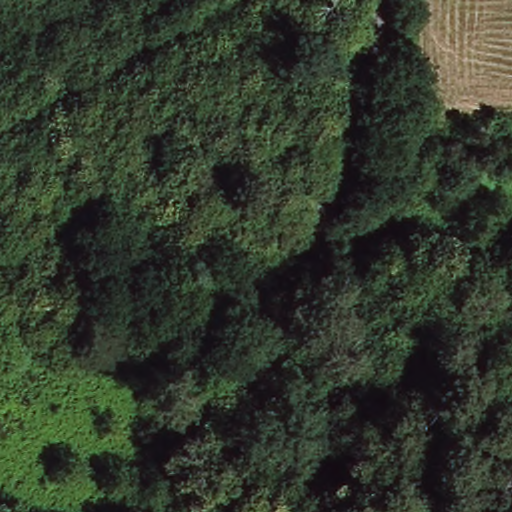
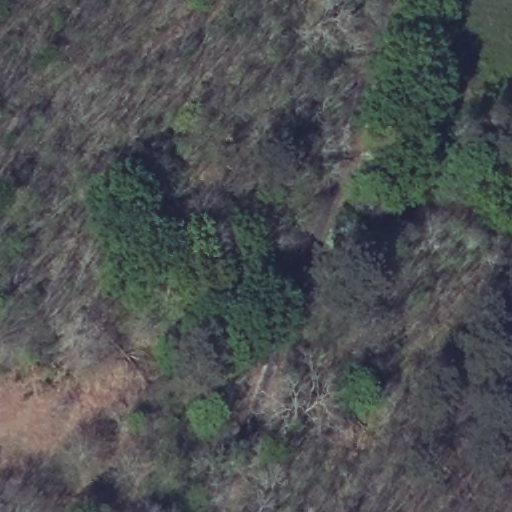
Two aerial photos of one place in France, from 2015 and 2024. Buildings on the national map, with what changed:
unchanged [(420,103),(405,100),(410,84),(424,88),(420,103)]

